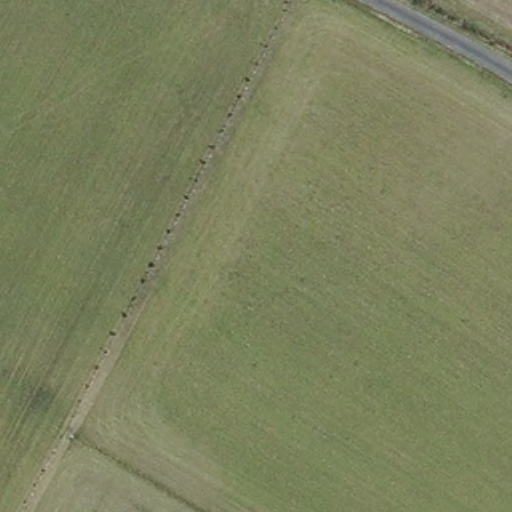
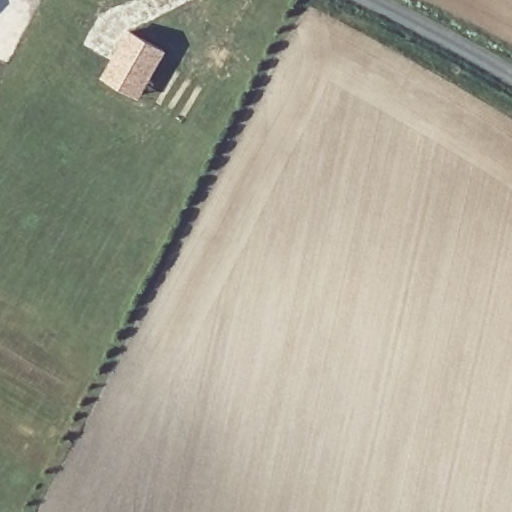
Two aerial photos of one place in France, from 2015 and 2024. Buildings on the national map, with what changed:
new [(127,27),(167,49),(139,97),(101,75),(127,27)]

